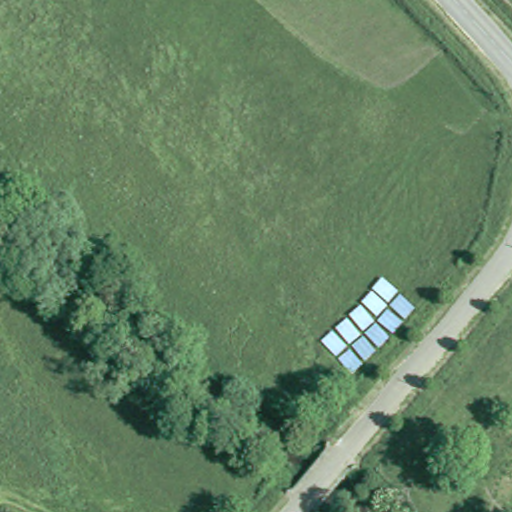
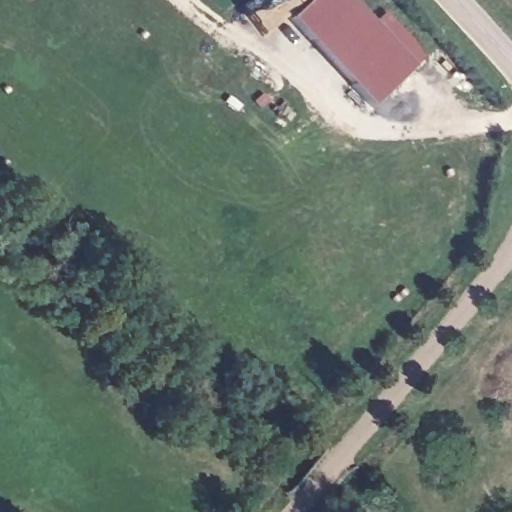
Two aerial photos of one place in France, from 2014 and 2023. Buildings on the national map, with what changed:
new [(386,12),(425,56),(415,65),(370,106),(287,20),(309,0),(355,0),(374,21),(386,12)]

